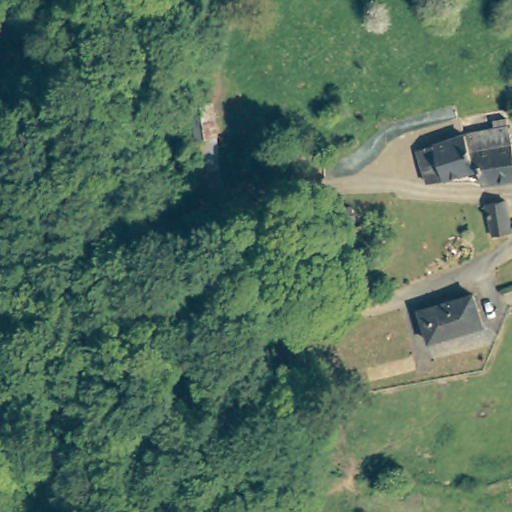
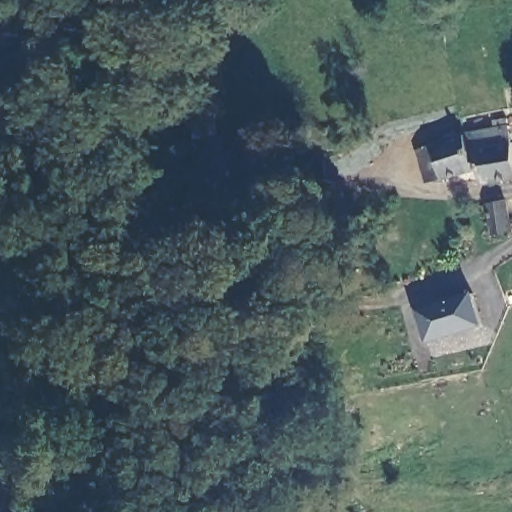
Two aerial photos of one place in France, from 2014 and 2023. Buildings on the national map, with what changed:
unchanged [(0,35),(0,0),(42,0),(53,0),(51,37),(0,35)]
unchanged [(186,81),(185,68),(209,66),(211,78),(201,80),(202,87),(191,88),(190,80),(186,81)]
unchanged [(211,91),(217,145),(199,148),(193,93),(211,91)]
unchanged [(494,127),(492,121),(506,118),(512,141),(512,178),(481,183),(479,167),(427,182),(417,150),(465,134),(494,127)]
unchanged [(194,172),(192,157),(217,154),(225,197),(187,202),(182,174),(194,172)]
unchanged [(504,199),(512,231),(492,235),(486,203),(504,199)]
unchanged [(352,239),(348,228),(329,233),(322,212),(346,205),(353,226),(361,223),(365,233),(352,239)]
unchanged [(190,228),(187,262),(168,260),(171,229),(190,228)]
unchanged [(316,230),(324,242),(317,246),(309,234),(316,230)]
unchanged [(283,284),(255,239),(268,231),(296,275),(283,284)]
unchanged [(429,340),(419,309),(473,292),(483,324),(429,340)]

